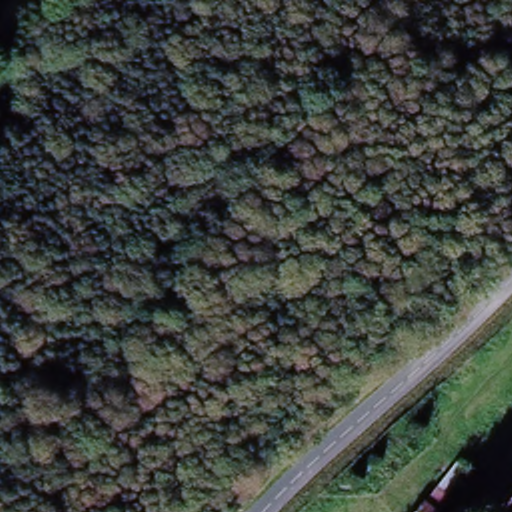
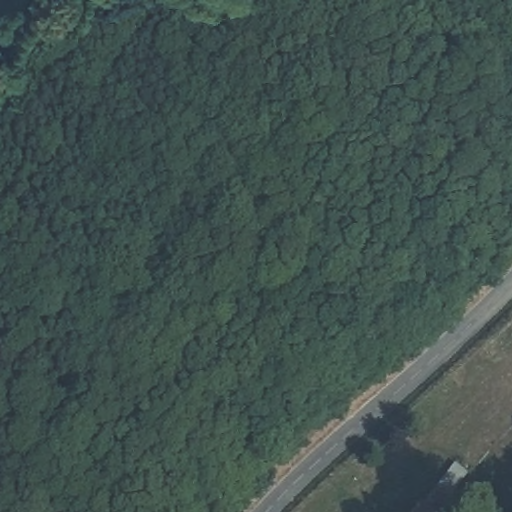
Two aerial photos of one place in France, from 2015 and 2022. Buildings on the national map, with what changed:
unchanged [(448,509),(446,512),(413,512),(425,496),(448,509)]

